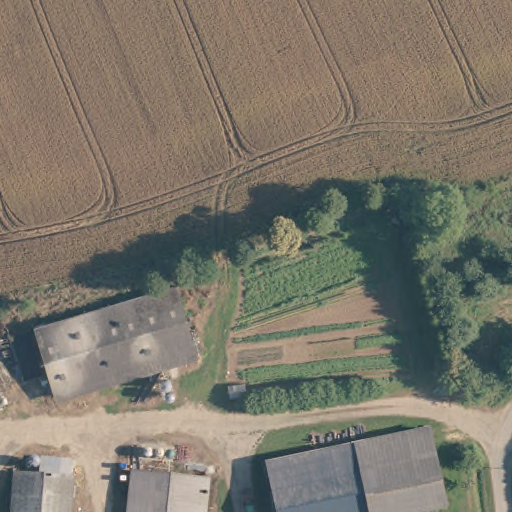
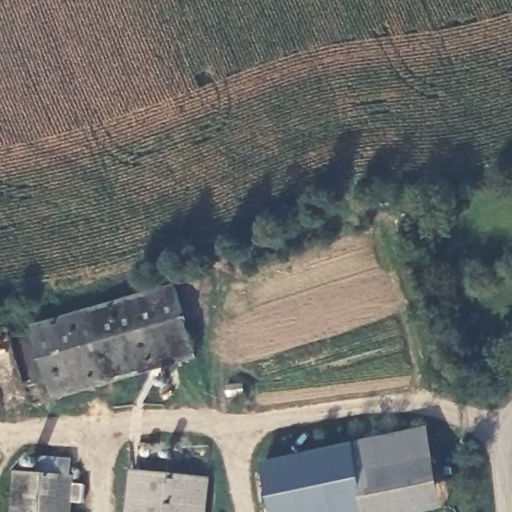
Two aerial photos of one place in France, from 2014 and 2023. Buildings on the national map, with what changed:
unchanged [(177,286),(196,360),(53,394),(36,322),(177,286)]
unchanged [(265,470),(428,437),(442,505),(412,512),(274,512),(265,470)]
unchanged [(15,483),(16,466),(39,468),(41,456),(58,457),(57,470),(70,471),(66,512),(13,512),(15,483)]
unchanged [(213,479),(209,512),(132,512),(137,469),(213,479)]

